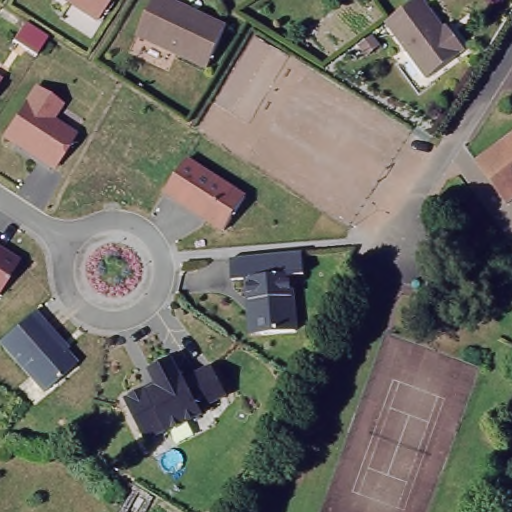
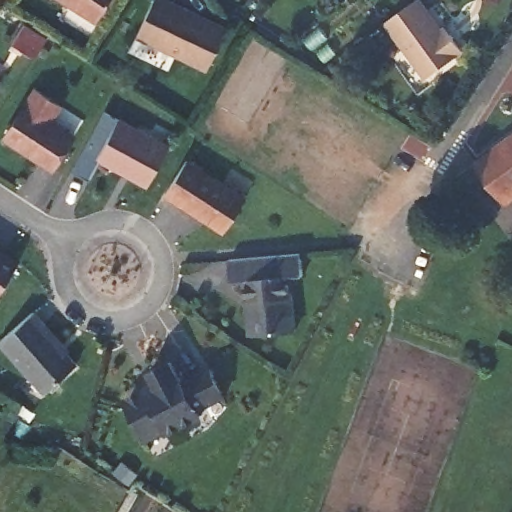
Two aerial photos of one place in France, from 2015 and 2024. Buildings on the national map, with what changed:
unchanged [(63,0),(109,0),(95,20),(63,0)]
unchanged [(174,0),(231,27),(212,69),(141,35),(158,0),(174,0)]
unchanged [(460,52),(460,53),(427,78),(385,22),(401,10),(415,0),(420,0),(442,29),(447,26),(452,33),(464,49),(460,52)]
unchanged [(24,23),(47,38),(34,56),(12,41),(24,23)]
unchanged [(35,89),(60,105),(50,120),(74,135),(52,169),(3,136),(35,89)]
new [(147,187),(97,159),(86,178),(72,170),(104,113),(110,116),(112,112),(170,145),(147,187)]
unchanged [(470,161),(512,130),(512,196),(500,205),(470,161)]
unchanged [(246,194),(223,233),(164,194),(186,157),(246,194)]
unchanged [(17,262),(0,290),(0,251),(17,262)]
unchanged [(302,252),(304,275),(290,276),(295,331),(261,335),(258,300),(249,300),(247,280),(232,281),(230,259),(302,252)]
unchanged [(80,363),(42,395),(0,342),(0,341),(38,309),(80,363)]
unchanged [(127,403),(129,398),(142,391),(149,392),(159,387),(151,371),(159,367),(171,360),(179,376),(181,375),(184,381),(210,368),(225,395),(198,409),(201,415),(179,427),(169,432),(167,428),(146,439),(127,403)]

